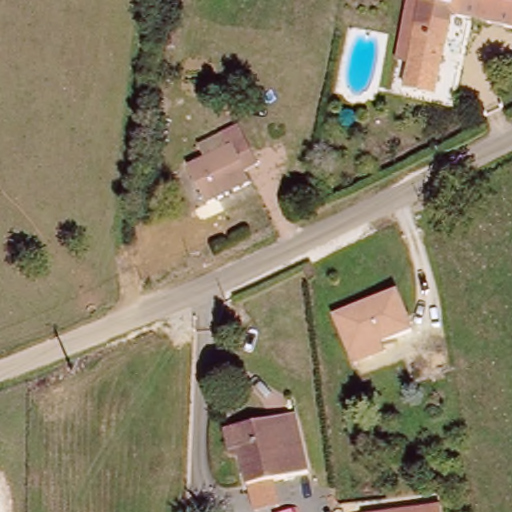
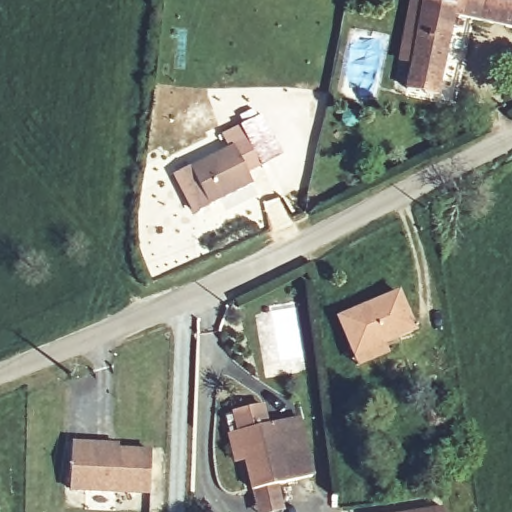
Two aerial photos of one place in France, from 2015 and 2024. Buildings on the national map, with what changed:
unchanged [(439,97),(405,92),(418,10),(420,0),(512,0),(512,33),(451,24),(439,97)]
demolished [(360,143),(347,140),(341,139),(347,104),(358,107),(367,109),(360,143)]
unchanged [(187,161),(229,141),(221,125),(238,116),(257,157),(245,163),(251,176),(204,198),(187,161)]
unchanged [(355,367),(351,359),(340,329),(337,320),(360,310),(393,296),(411,332),(381,345),(384,353),(355,367)]
unchanged [(279,421),(302,416),(316,475),(295,481),(279,421)]
unchanged [(295,481),(253,492),(244,456),(227,460),(221,435),(237,431),(279,421),(295,481)]
new [(120,449),(152,450),(151,495),(70,493),(72,442),(119,444),(120,449)]
unchanged [(444,505),(445,512),(397,512),(444,505)]

